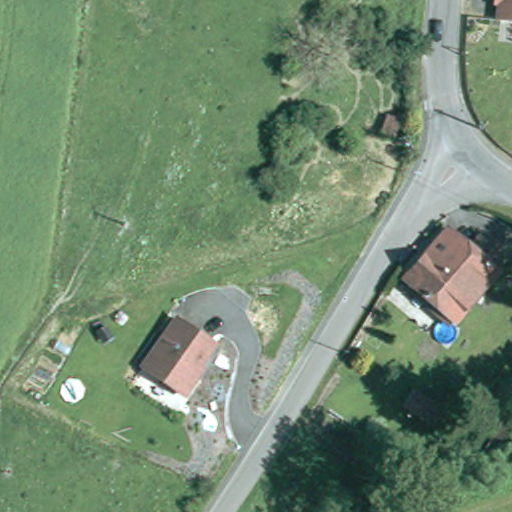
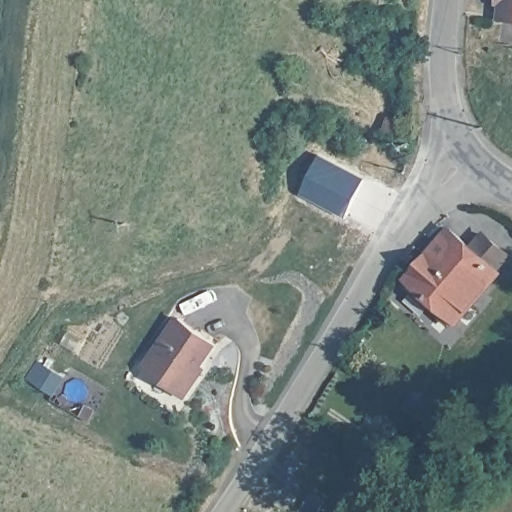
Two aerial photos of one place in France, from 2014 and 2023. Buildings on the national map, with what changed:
unchanged [(512,25),(496,22),(498,7),(494,7),(495,0),(512,0),(512,25)]
unchanged [(382,135),(388,115),(402,120),(394,138),(382,135)]
new [(315,155),(362,179),(342,217),(293,194),(315,155)]
unchanged [(403,287),(407,282),(404,279),(448,230),(470,247),(481,235),(507,256),(495,269),(498,272),(454,323),(451,321),(447,325),(403,287)]
unchanged [(196,380),(185,397),(145,368),(152,357),(179,320),(215,346),(201,366),(204,368),(196,380)]
unchanged [(431,428),(400,406),(408,392),(441,413),(431,428)]

